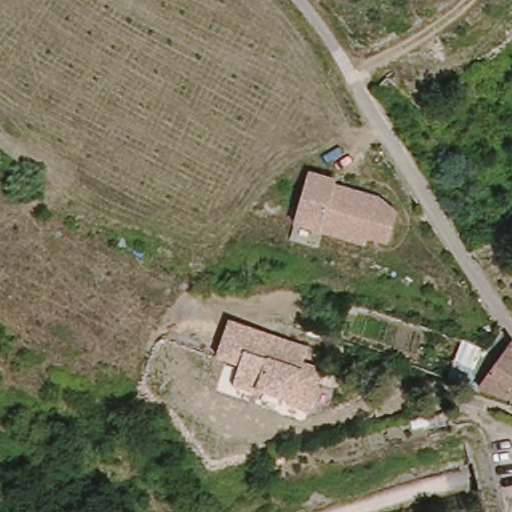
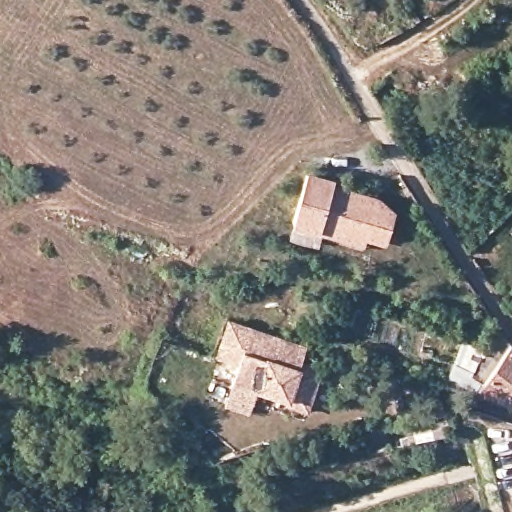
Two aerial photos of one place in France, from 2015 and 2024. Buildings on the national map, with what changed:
unchanged [(312,169),(345,177),(343,186),(391,196),(378,243),(297,221),(312,169)]
unchanged [(293,356),(310,361),(307,371),(326,379),(315,409),(235,383),(237,364),(217,360),(231,317),(297,334),(293,356)]
unchanged [(512,350),(512,399),(476,384),(512,350)]

